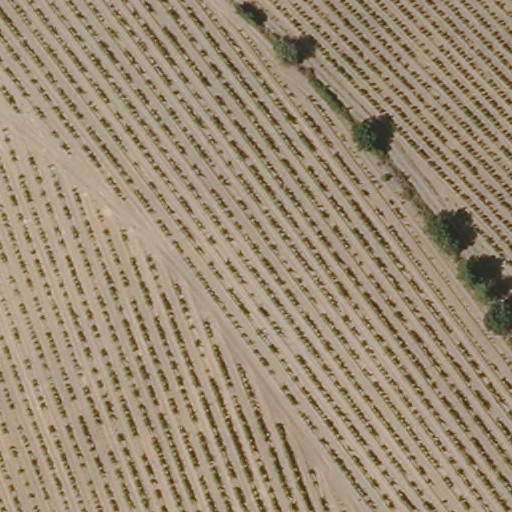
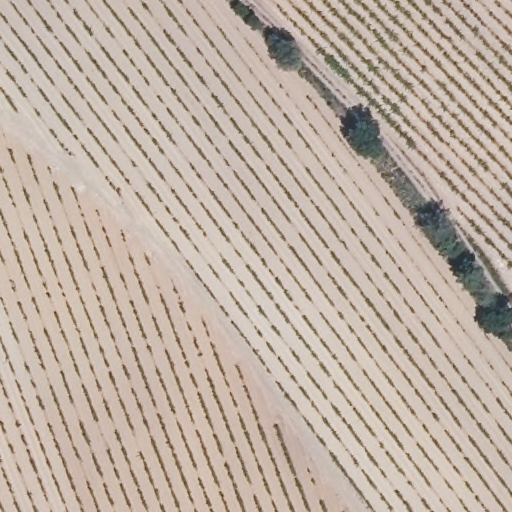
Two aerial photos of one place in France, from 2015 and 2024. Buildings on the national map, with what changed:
[]

